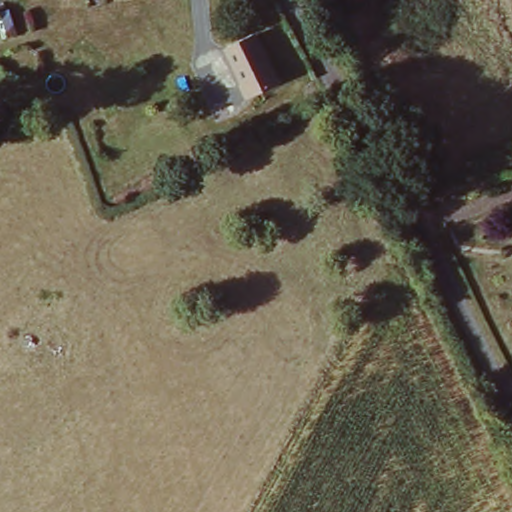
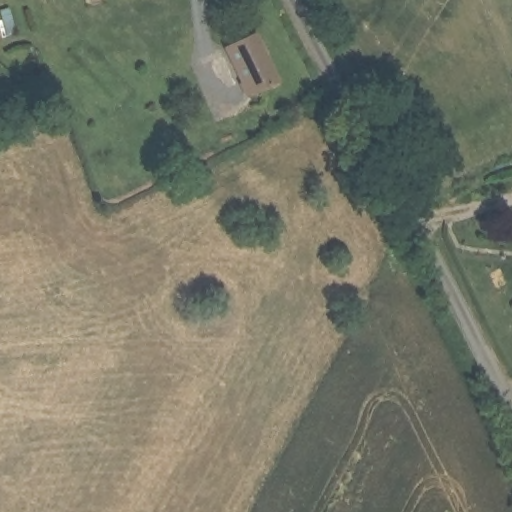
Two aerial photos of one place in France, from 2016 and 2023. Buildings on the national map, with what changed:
unchanged [(223,49),(257,36),(279,85),(245,101),(223,49)]

